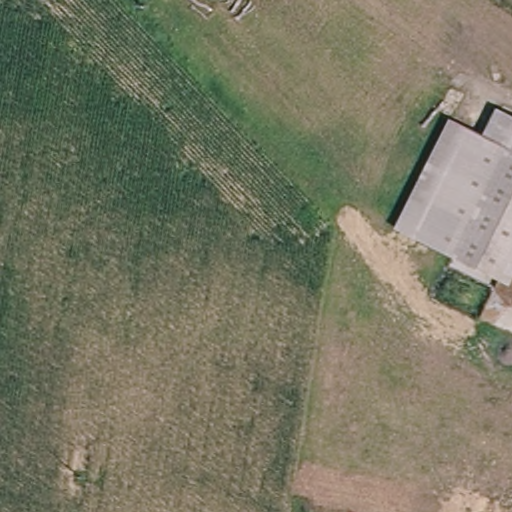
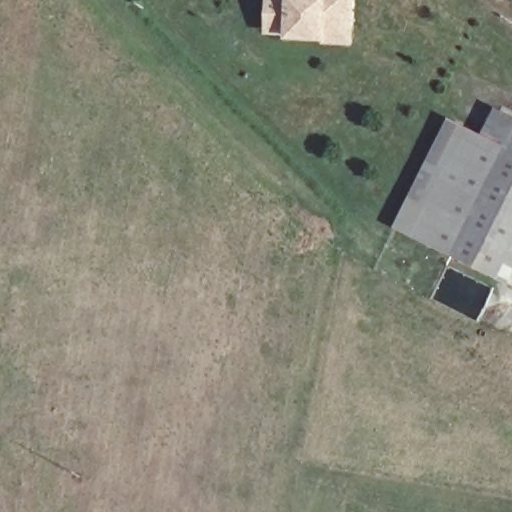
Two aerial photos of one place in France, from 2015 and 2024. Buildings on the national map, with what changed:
new [(325,42),(293,41),(293,35),(266,34),(275,3),(307,4),(307,0),(352,0),(352,28),(351,43),(325,42)]
unchanged [(447,255),(418,240),(404,233),(465,121),(481,130),(490,106),(498,110),(512,117),(512,236),(489,277),(447,255)]

